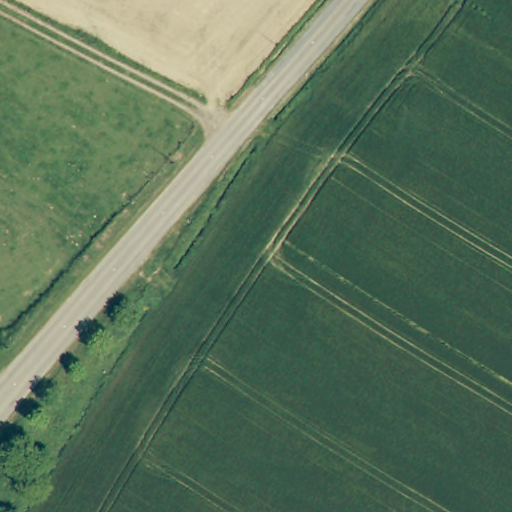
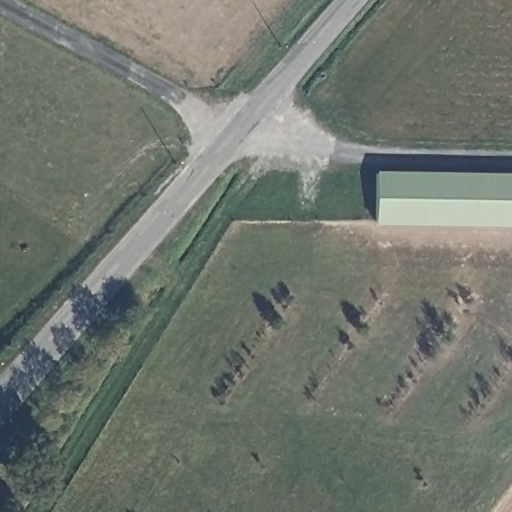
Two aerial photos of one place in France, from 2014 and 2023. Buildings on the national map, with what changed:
new [(374,170),(512,173),(512,225),(373,222),(374,170)]

